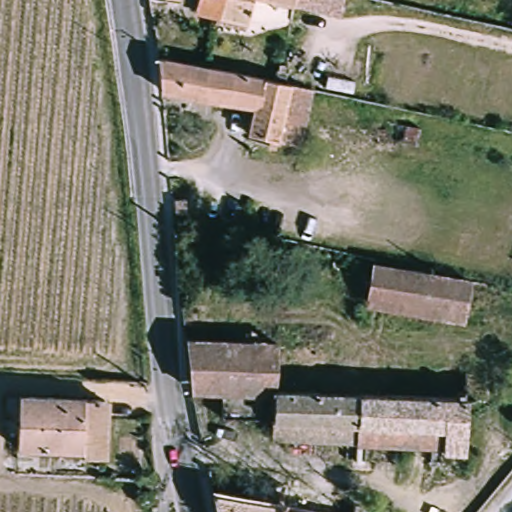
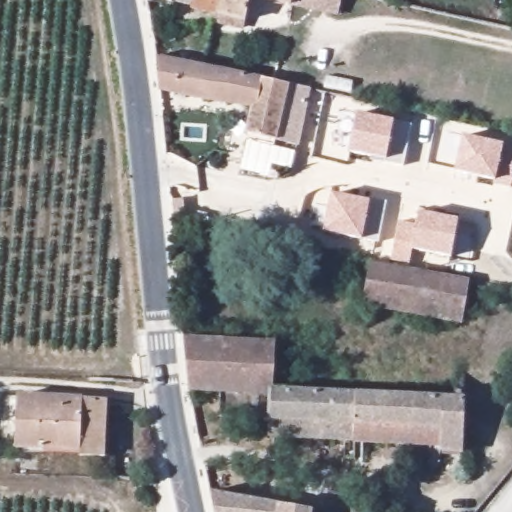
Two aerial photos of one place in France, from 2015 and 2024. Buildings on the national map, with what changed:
unchanged [(210,15),(191,10),(191,5),(180,2),(178,5),(161,0),(213,0),(210,15)]
unchanged [(241,22),(210,15),(213,0),(247,0),(241,22)]
unchanged [(335,17),(256,0),(338,0),(335,17)]
unchanged [(155,57),(199,67),(241,77),(309,92),(301,132),(297,146),(243,134),(249,110),(158,90),(155,57)]
new [(403,164),(386,160),(349,151),(358,112),(393,120),(413,125),(403,164)]
new [(455,171),(463,135),(504,144),(504,142),(512,144),(512,185),(512,188),(495,184),(496,180),(455,171)]
new [(378,243),(361,240),(323,232),(331,192),(370,200),(386,203),(378,243)]
unchanged [(181,212),(169,212),(168,201),(181,200),(181,212)]
new [(452,256),(412,248),(409,262),(392,258),(398,221),(417,222),(419,211),(459,219),(452,256)]
unchanged [(350,300),(359,256),(391,262),(480,281),(472,326),(350,300)]
unchanged [(463,456),(439,454),(268,440),(268,422),(266,398),(184,394),(186,335),(275,338),(276,387),(465,394),(463,456)]
unchanged [(100,455),(18,452),(21,400),(104,402),(100,455)]
unchanged [(302,512),(209,512),(206,492),(302,512)]

